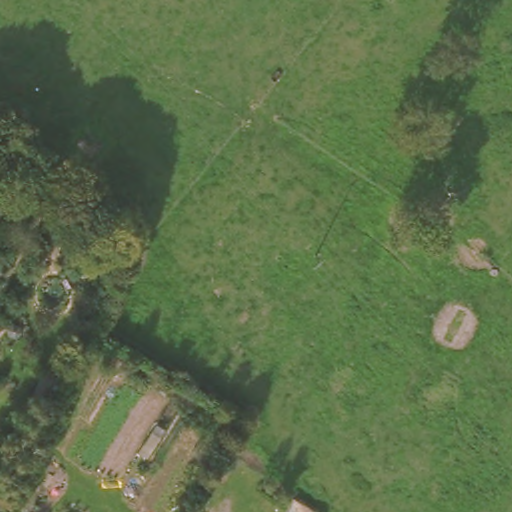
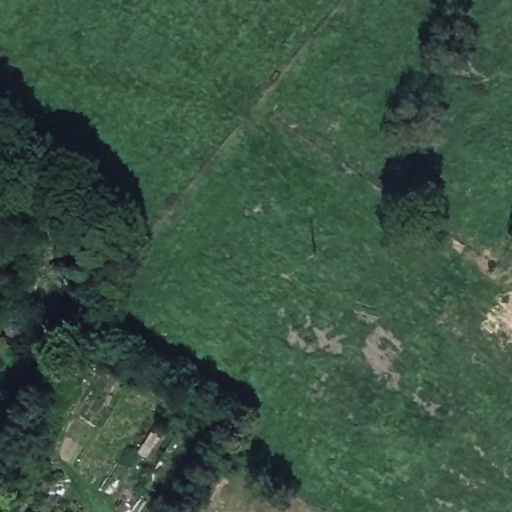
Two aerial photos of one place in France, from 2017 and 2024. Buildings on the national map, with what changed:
unchanged [(71,184),(60,197),(0,145),(0,130),(5,125),(71,184)]

